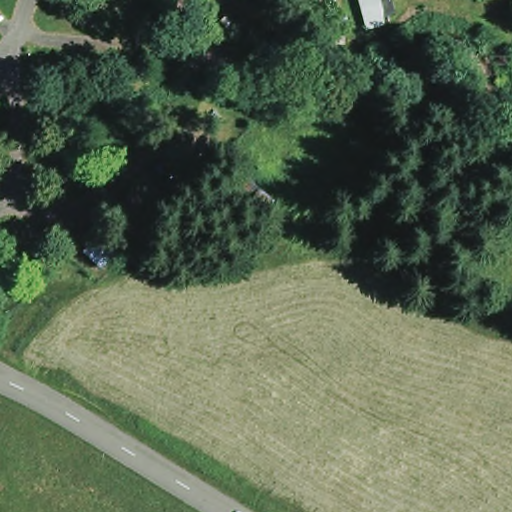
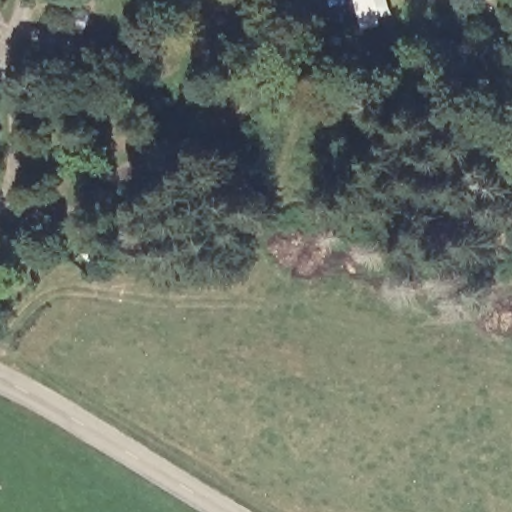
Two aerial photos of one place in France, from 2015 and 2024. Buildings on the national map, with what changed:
[]

